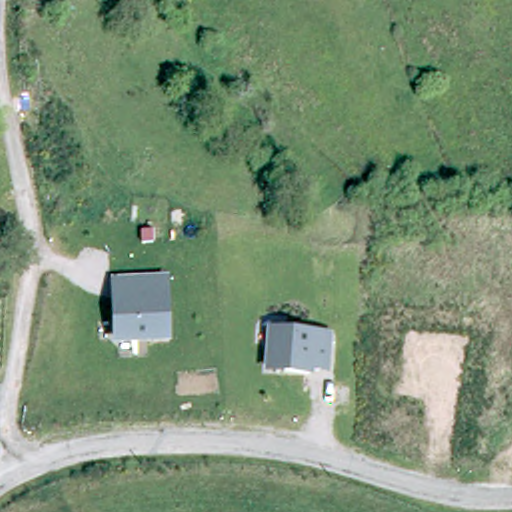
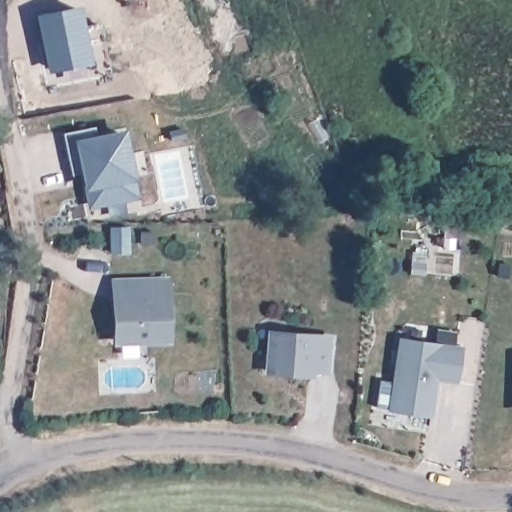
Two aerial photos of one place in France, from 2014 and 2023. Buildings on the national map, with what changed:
new [(75,6),(86,58),(49,66),(37,14),(75,6)]
new [(145,198),(94,209),(85,173),(77,174),(74,159),(68,133),(99,125),(100,133),(129,126),(145,198)]
unchanged [(171,344),(113,344),(112,278),(169,275),(171,344)]
unchanged [(329,374),(310,373),(310,379),(264,376),(267,329),(332,335),(329,374)]
new [(457,382),(437,379),(432,416),(388,411),(397,337),(462,345),(457,382)]

